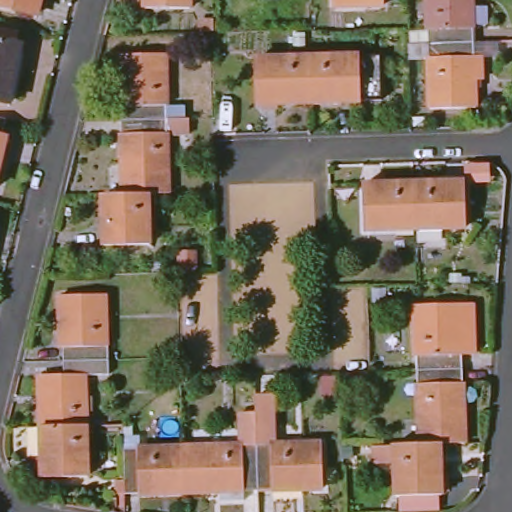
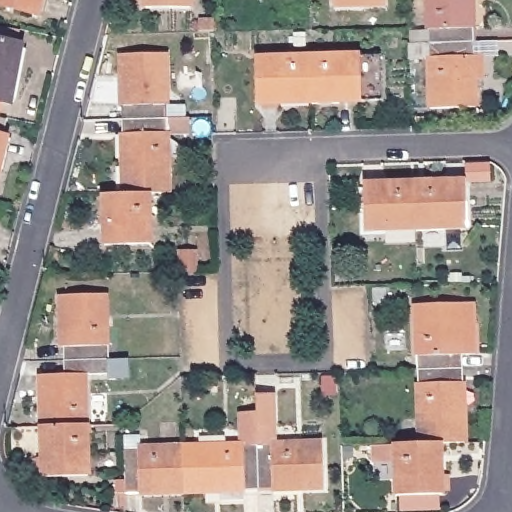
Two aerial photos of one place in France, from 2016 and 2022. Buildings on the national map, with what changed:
unchanged [(0,0),(45,0),(41,16),(0,5),(0,0)]
unchanged [(190,0),(190,9),(145,9),(144,0),(190,0)]
unchanged [(383,0),(383,5),(332,6),(332,0),(383,0)]
unchanged [(415,44),(415,39),(423,38),(423,30),(433,30),(432,0),(474,0),(476,43),(415,44)]
unchanged [(10,104),(0,102),(0,41),(20,45),(10,104)]
unchanged [(412,44),(415,44),(476,43),(478,106),(435,108),(434,58),(412,59),(412,44)]
unchanged [(125,119),(124,54),(167,54),(169,118),(125,119)]
unchanged [(306,57),(360,55),(360,100),(307,101),(306,57)]
unchanged [(307,101),(257,103),(256,58),(306,57),(307,101)]
unchanged [(169,118),(171,192),(151,192),(127,193),(125,119),(169,118)]
unchanged [(412,184),(460,183),(461,227),(413,229),(412,184)]
unchanged [(413,229),(363,229),(361,184),(412,184),(413,229)]
unchanged [(127,193),(151,192),(153,244),(109,245),(107,194),(127,193)]
unchanged [(190,252),(190,271),(179,272),(178,252),(190,252)]
unchanged [(63,361),(62,347),(60,347),(59,296),(105,294),(107,359),(63,361)]
unchanged [(417,370),(415,305),(459,304),(461,369),(417,370)]
unchanged [(107,359),(107,373),(84,374),(85,424),(41,426),(40,375),(63,374),(63,361),(107,359)]
unchanged [(461,369),(464,442),(439,443),(420,444),(417,370),(461,369)]
unchanged [(265,441),(265,408),(264,393),(280,392),(282,439),(332,439),(332,483),(267,484),(265,441)]
unchanged [(191,443),(250,441),(249,409),(265,408),(265,441),(267,484),(254,485),(253,495),(229,495),(229,486),(193,487),(191,443)]
unchanged [(85,424),(85,475),(42,477),(41,426),(85,424)]
unchanged [(193,487),(134,489),(132,444),(191,443),(193,487)]
unchanged [(439,443),(441,494),(395,496),(394,460),(371,461),(371,446),(393,444),(420,444),(439,443)]

